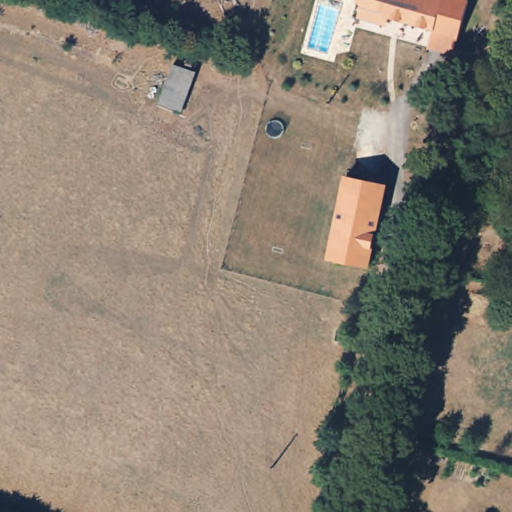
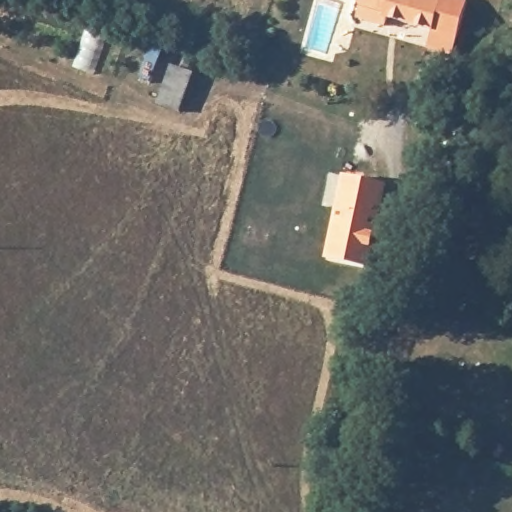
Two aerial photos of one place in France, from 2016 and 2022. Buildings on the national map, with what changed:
unchanged [(390,20),(388,27),(383,30),(366,26),(363,21),(365,13),(361,7),(363,0),(458,0),(469,3),(462,37),(460,47),(434,40),(436,30),(390,20)]
unchanged [(189,107),(163,104),(175,71),(200,79),(189,107)]
unchanged [(388,172),(371,251),(364,283),(327,273),(333,243),(350,163),(388,172)]

